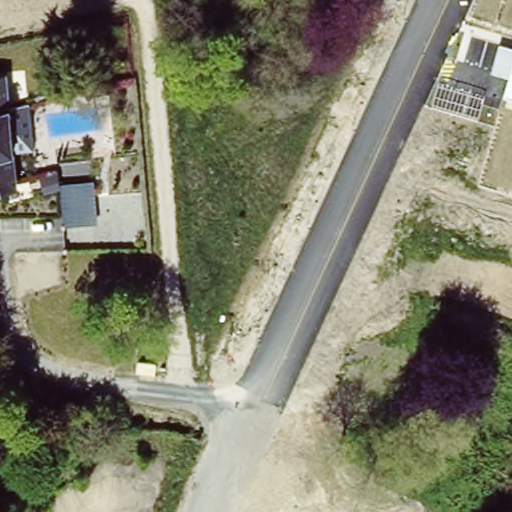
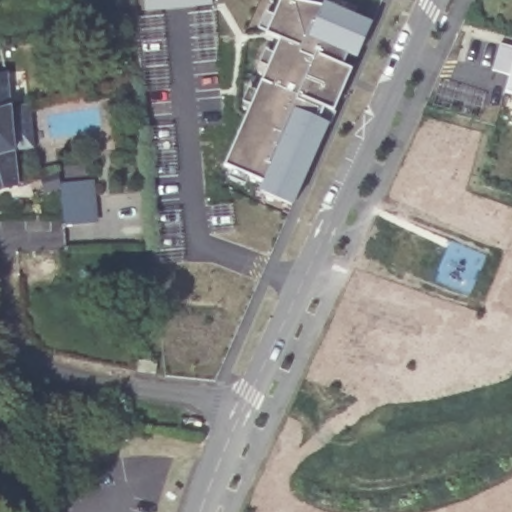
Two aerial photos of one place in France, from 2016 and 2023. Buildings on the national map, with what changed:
new [(211,6),(148,13),(146,0),(210,0),(211,6)]
new [(223,166),(278,40),(264,34),(280,0),(295,0),(321,6),(323,3),(371,22),(292,206),(259,191),(262,182),(223,166)]
unchanged [(512,47),(512,95),(504,93),(509,76),(492,72),(499,44),(512,47)]
unchanged [(13,101),(31,97),(36,143),(14,146),(21,180),(0,190),(0,72),(10,69),(13,101)]
new [(98,223),(63,225),(60,188),(44,193),(38,172),(56,167),(60,183),(94,180),(98,223)]

